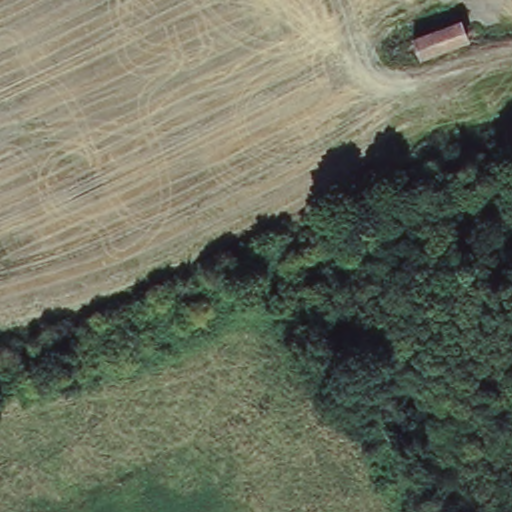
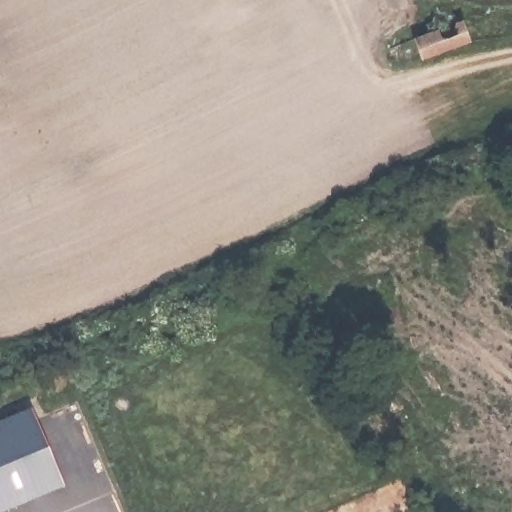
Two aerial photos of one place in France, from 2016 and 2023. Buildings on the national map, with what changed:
unchanged [(458,17),(468,39),(418,60),(407,39),(426,31),(458,17)]
new [(35,416),(65,487),(6,512),(0,512),(0,430),(35,416)]

